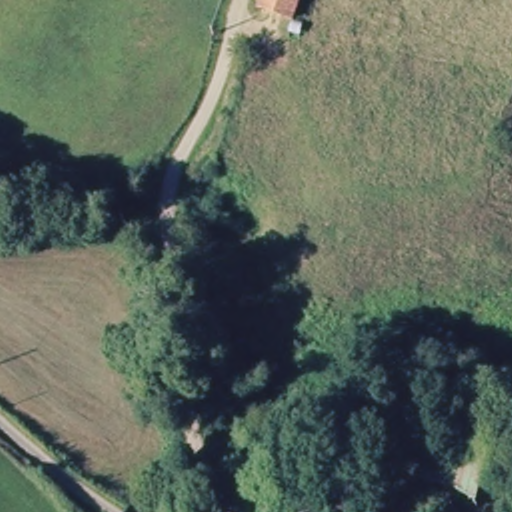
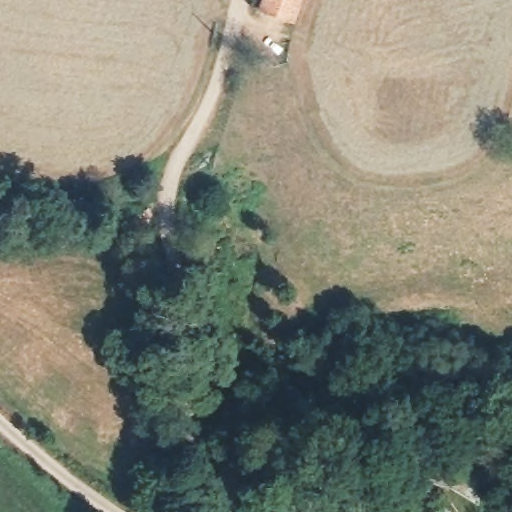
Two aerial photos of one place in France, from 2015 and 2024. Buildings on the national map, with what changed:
unchanged [(299,22),(265,11),(270,0),(306,0),(299,22)]
unchanged [(488,502),(410,492),(419,452),(492,460),(488,502)]

